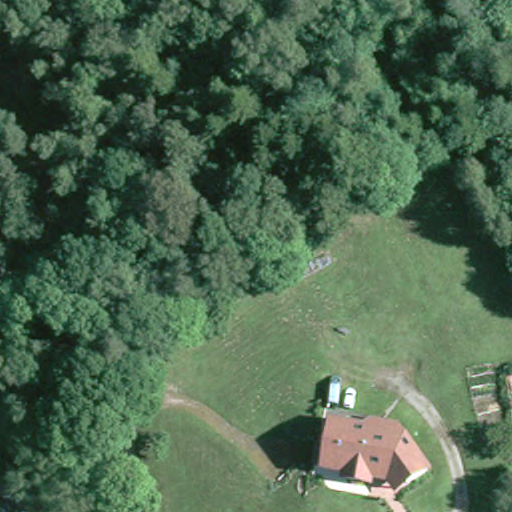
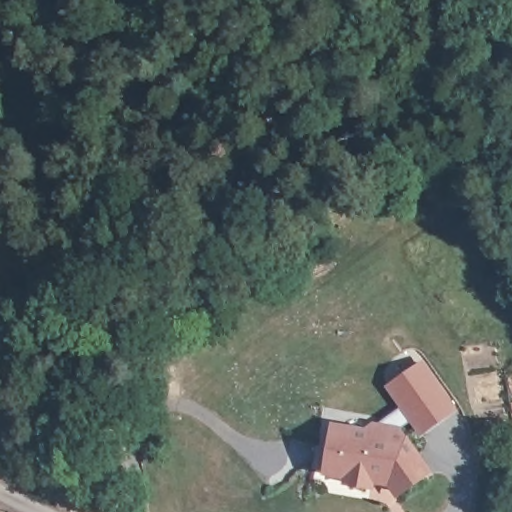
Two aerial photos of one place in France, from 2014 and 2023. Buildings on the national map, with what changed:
new [(425,363),(458,410),(437,425),(426,434),(391,386),(403,377),(425,363)]
unchanged [(392,482),(387,476),(375,473),(373,487),(347,482),(347,477),(324,472),(326,447),(331,427),(342,429),(361,433),(371,425),(397,431),(430,473),(410,486),(401,492),(392,482)]

